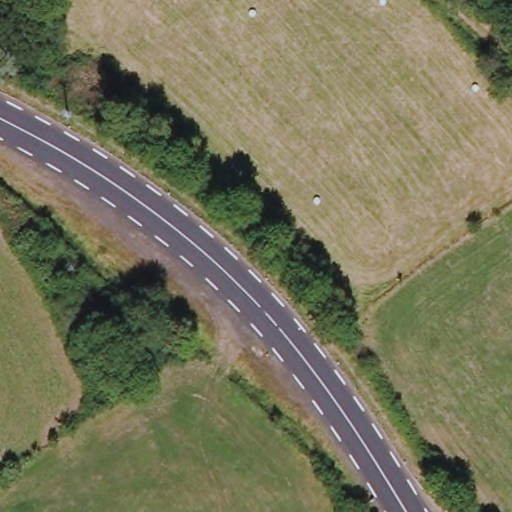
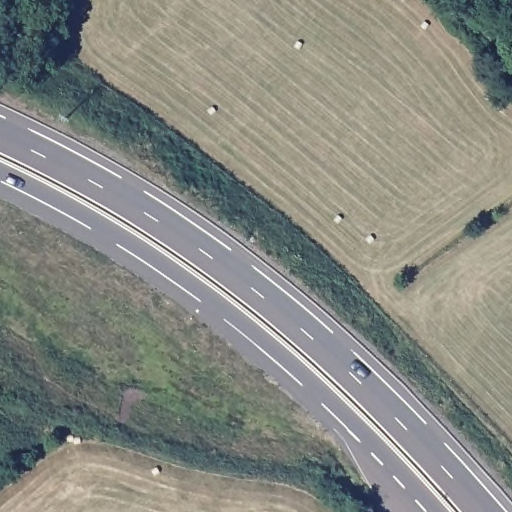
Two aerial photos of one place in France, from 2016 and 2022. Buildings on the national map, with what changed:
[]

